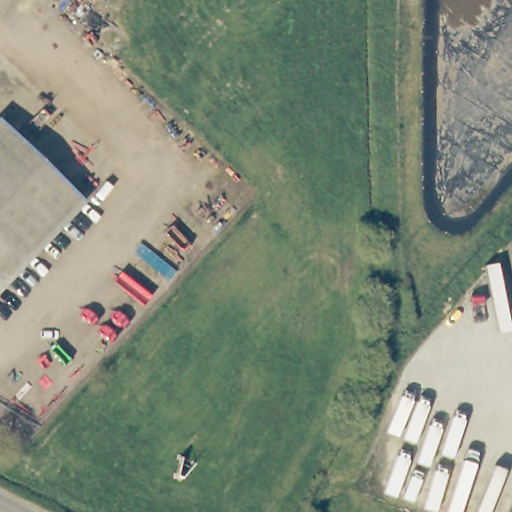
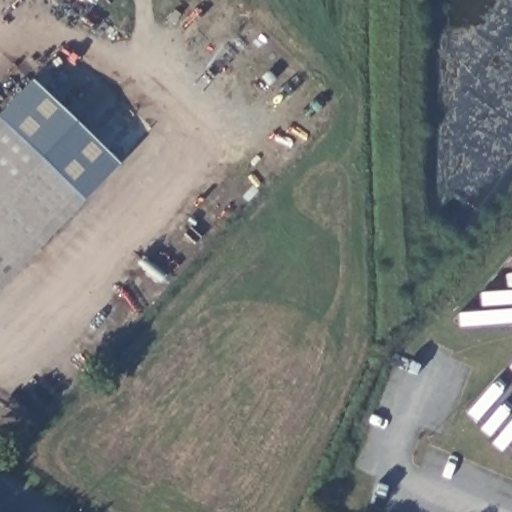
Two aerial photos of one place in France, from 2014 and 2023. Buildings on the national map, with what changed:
new [(0,121),(0,113),(30,79),(118,163),(82,198),(0,121)]
unchanged [(82,198),(0,285),(0,121),(82,198)]

